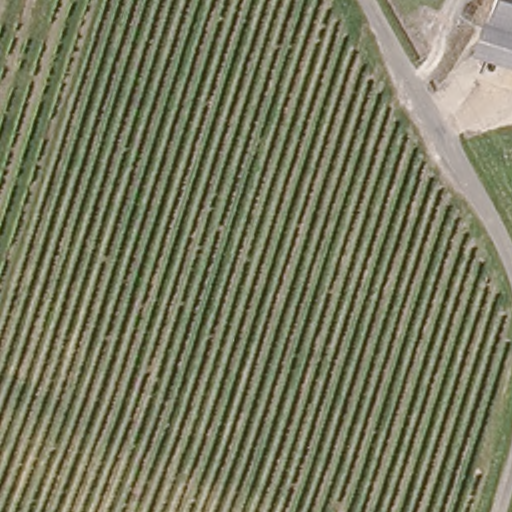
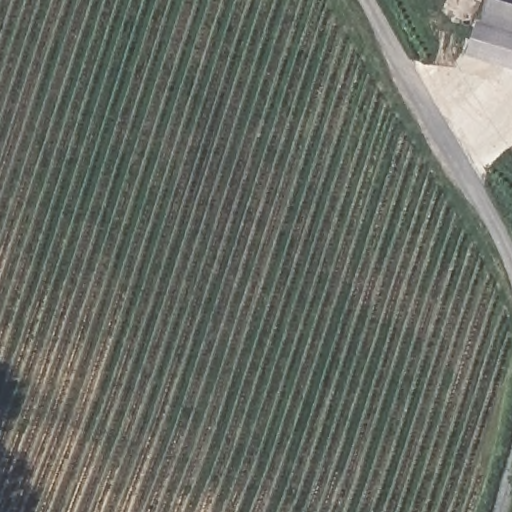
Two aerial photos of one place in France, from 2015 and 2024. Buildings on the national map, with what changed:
unchanged [(481,24),(488,0),(512,0),(512,33),(481,24)]
unchanged [(512,37),(512,78),(468,62),(480,27),(512,37)]

